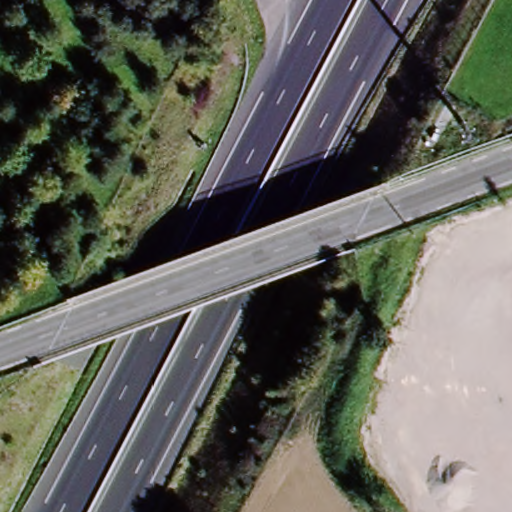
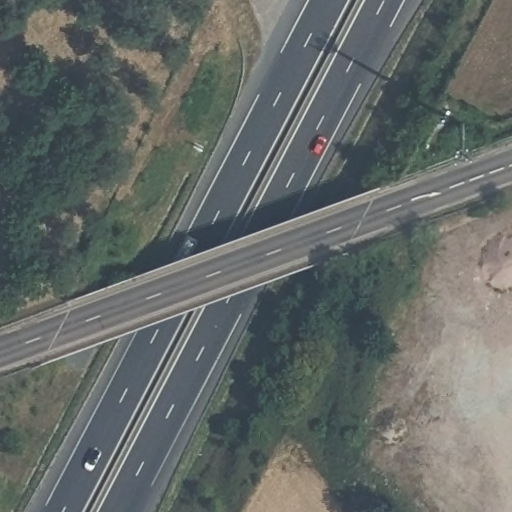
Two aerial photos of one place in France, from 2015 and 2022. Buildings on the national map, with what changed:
[]

